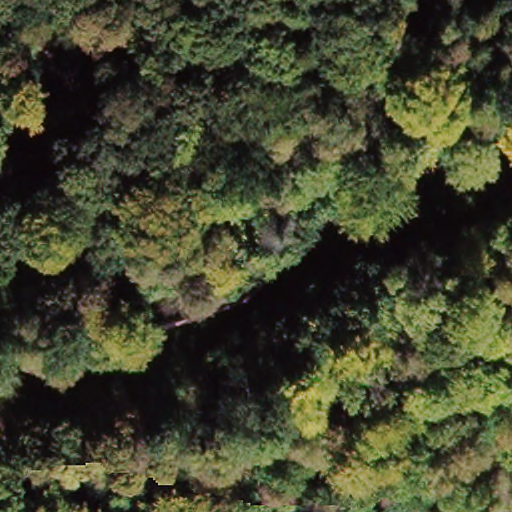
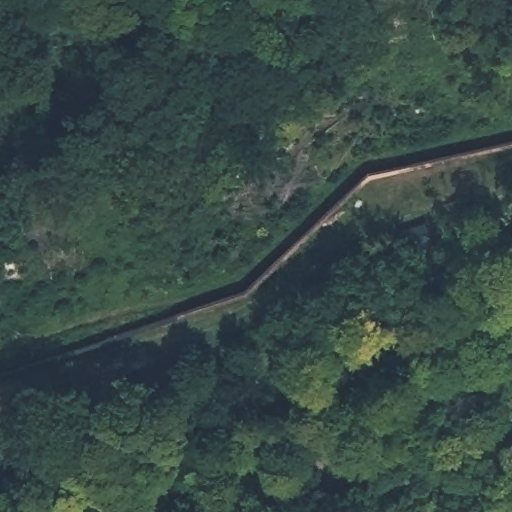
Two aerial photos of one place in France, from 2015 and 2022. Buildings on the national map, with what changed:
unchanged [(433,219),(440,243),(405,256),(397,232),(433,219)]

